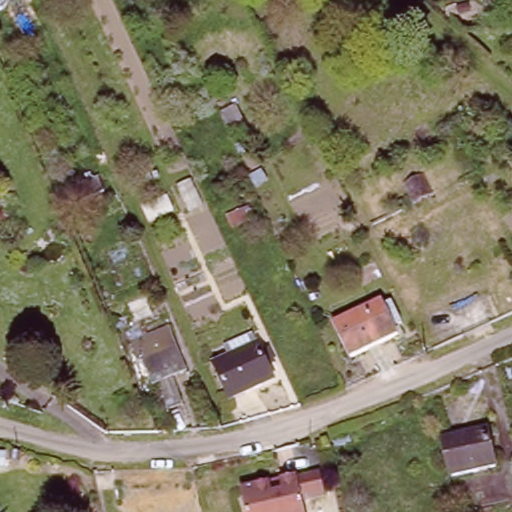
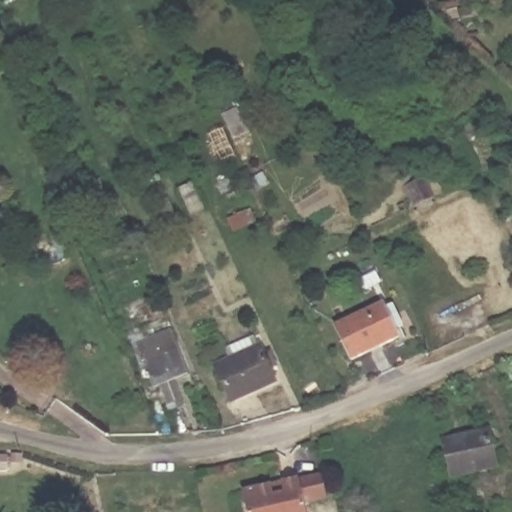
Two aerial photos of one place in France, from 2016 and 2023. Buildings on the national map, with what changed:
unchanged [(247,131),(232,137),(221,112),(235,106),(247,131)]
unchanged [(432,197),(412,206),(403,186),(422,176),(432,197)]
unchanged [(97,195),(72,206),(66,191),(91,180),(97,195)]
unchanged [(174,212),(149,222),(142,207),(167,197),(174,212)]
unchanged [(401,323),(393,327),(397,334),(350,357),(335,325),(382,302),(388,314),(395,311),(401,323)]
unchanged [(176,376),(188,403),(174,409),(162,382),(156,384),(147,387),(131,346),(135,344),(173,328),(191,370),(176,376)]
unchanged [(263,373),(269,386),(225,405),(210,370),(224,363),(220,352),(249,340),(253,350),(257,358),(264,355),(270,370),(263,373)]
unchanged [(490,467),(445,477),(436,438),(481,428),(490,467)]
unchanged [(0,469),(0,454),(6,454),(6,470),(0,469)]
unchanged [(236,489),(265,482),(275,481),(283,478),(292,477),(313,472),(318,496),(297,500),(300,512),(241,512),(236,489)]

